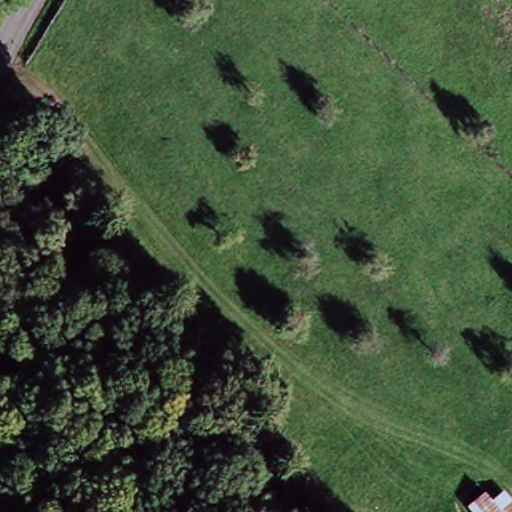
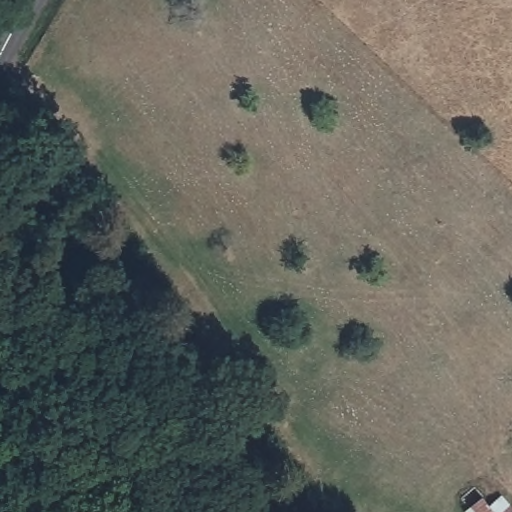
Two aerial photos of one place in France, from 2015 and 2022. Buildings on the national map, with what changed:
unchanged [(487,510),(498,500),(509,512),(466,512),(479,501),(487,510)]

